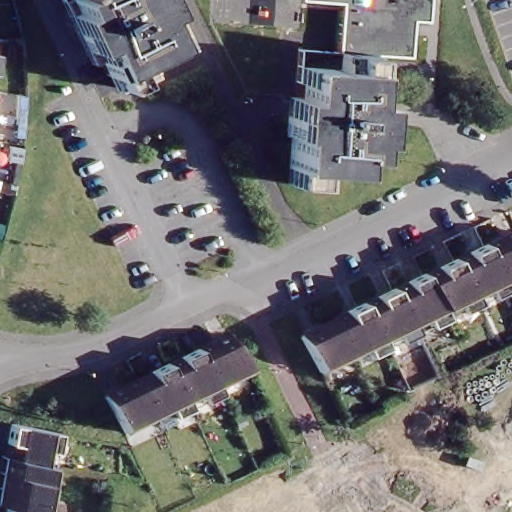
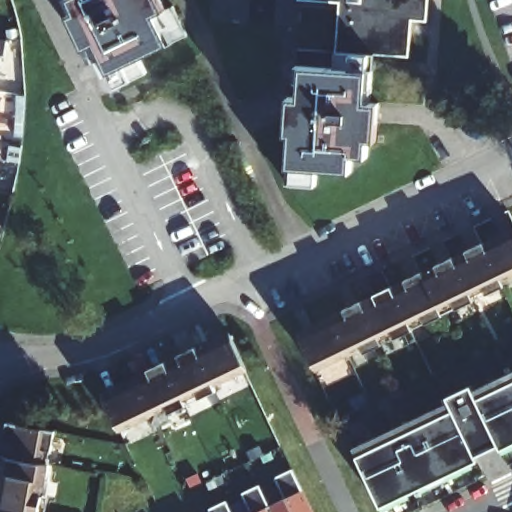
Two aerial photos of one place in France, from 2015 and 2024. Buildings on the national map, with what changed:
unchanged [(165,1),(167,0),(174,0),(186,27),(140,50),(151,73),(120,88),(112,73),(106,61),(95,66),(63,0),(165,0),(165,1)]
unchanged [(427,18),(412,17),(410,53),(374,51),(335,48),(338,0),(428,0),(427,18)]
unchanged [(374,51),(372,98),(380,98),(377,137),(370,137),(369,153),(353,152),(352,168),(340,167),(318,166),(317,184),(287,182),(292,132),(285,131),(288,93),(305,95),(305,78),(294,76),(297,46),(335,48),(374,51)]
unchanged [(501,272),(504,279),(501,280),(487,287),(483,279),(468,285),(472,293),(472,294),(470,295),(457,302),(452,294),(438,300),(442,308),(440,310),(426,316),(422,308),(408,314),(412,322),(410,324),(395,331),(392,322),(378,329),(382,337),(380,338),(363,345),(360,337),(347,343),(347,347),(314,362),(302,336),(299,330),(331,314),(362,300),(390,286),(421,271),(452,257),(482,242),(512,228),(512,267),(501,272)]
unchanged [(232,332),(248,366),(215,381),(199,347),(232,332)]
unchanged [(199,347),(215,381),(218,386),(200,395),(197,389),(185,396),(167,362),(199,347)]
unchanged [(167,362),(185,396),(187,401),(170,410),(167,404),(153,411),(137,376),(167,362)]
unchanged [(153,411),(121,426),(115,413),(104,392),(137,376),(153,411)]
new [(508,449),(506,445),(480,456),(482,461),(386,508),(363,454),(459,409),(455,396),(477,385),(482,397),(512,383),(512,447),(508,449)]
unchanged [(42,446),(34,444),(31,458),(0,452),(0,437),(4,418),(45,426),(42,446)]
unchanged [(41,459),(37,477),(35,476),(33,489),(35,490),(32,506),(19,504),(18,512),(0,512),(0,452),(31,458),(33,458),(37,459),(41,459)]
unchanged [(283,498),(273,478),(291,470),(311,512),(272,512),(269,505),(283,498)]
unchanged [(259,486),(269,505),(272,512),(251,512),(242,493),(259,486)]
unchanged [(227,501),(233,512),(211,512),(210,509),(227,501)]

